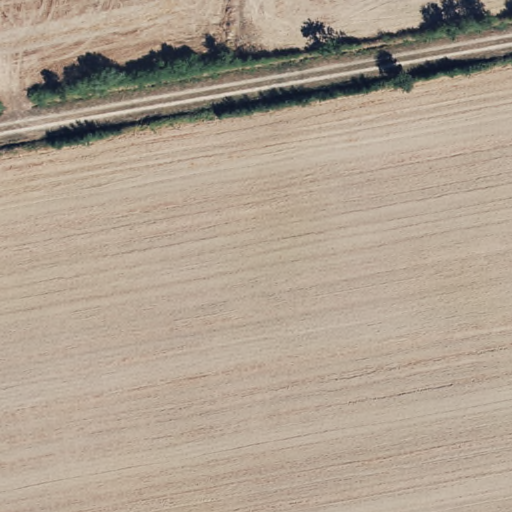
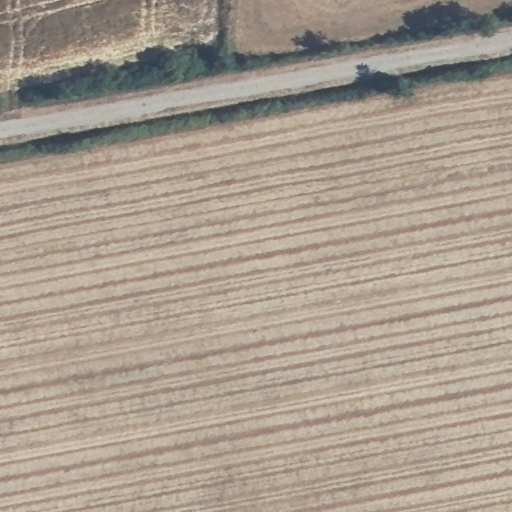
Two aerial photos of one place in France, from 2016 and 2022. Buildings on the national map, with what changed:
[]

